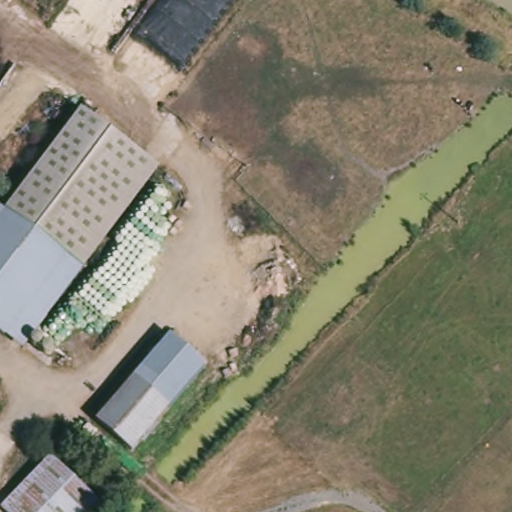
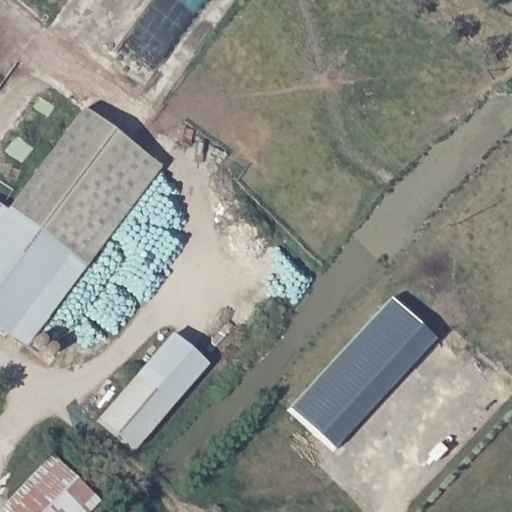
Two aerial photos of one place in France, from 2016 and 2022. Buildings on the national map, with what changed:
unchanged [(5,210),(86,112),(162,174),(80,268),(5,210)]
unchanged [(5,210),(80,268),(17,348),(0,334),(0,205),(5,210)]
new [(376,300),(420,340),(318,450),(273,411),(376,300)]
unchanged [(169,335),(204,366),(130,449),(95,418),(169,335)]
unchanged [(100,504),(91,512),(7,512),(0,505),(0,504),(55,455),(100,504)]

